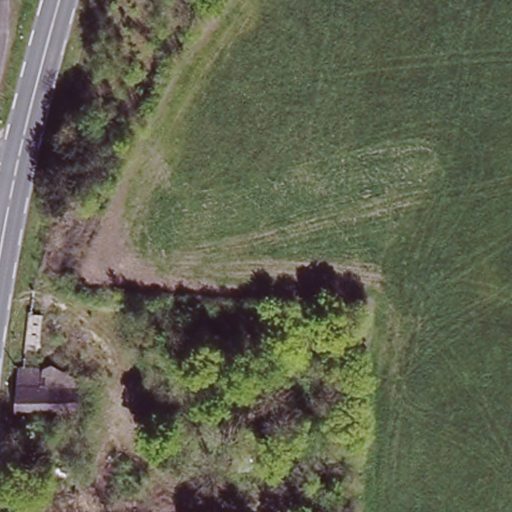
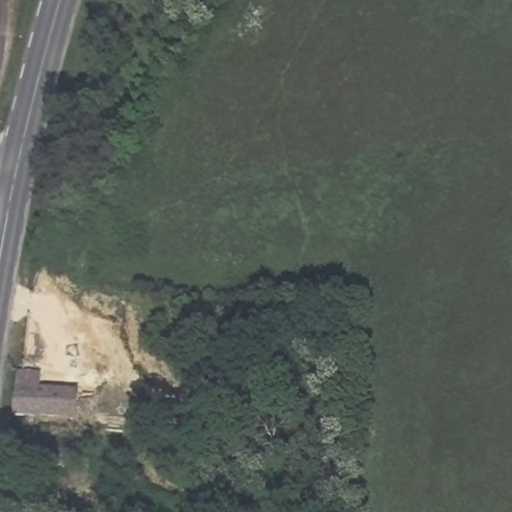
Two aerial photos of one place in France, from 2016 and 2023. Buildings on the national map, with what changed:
unchanged [(75,399),(75,418),(14,415),(18,373),(47,374),(46,389),(76,391),(76,384),(98,384),(98,399),(75,399)]
unchanged [(69,463),(68,493),(49,493),(50,463),(69,463)]

